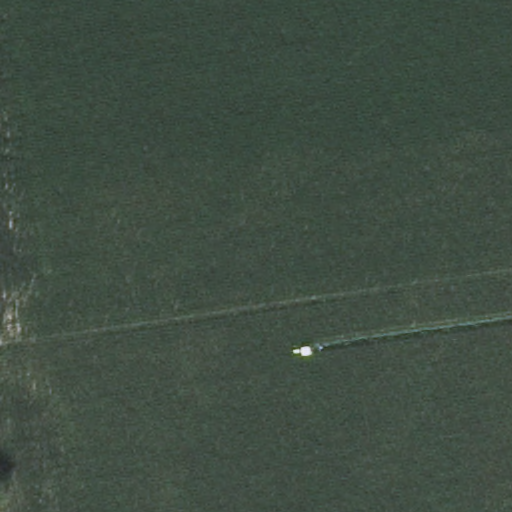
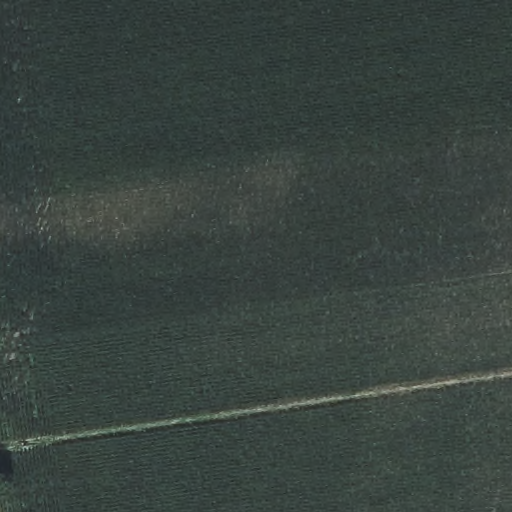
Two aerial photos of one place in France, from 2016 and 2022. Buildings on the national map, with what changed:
[]

